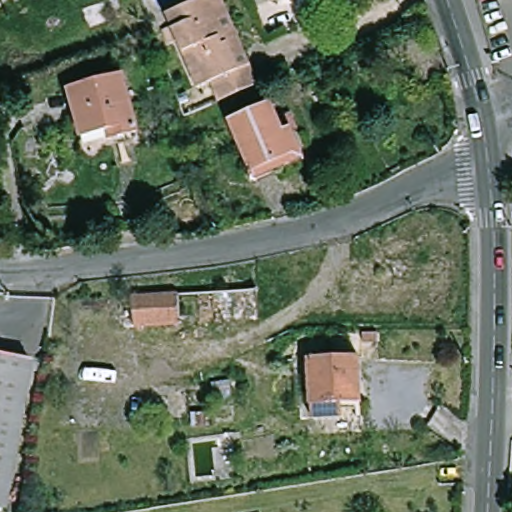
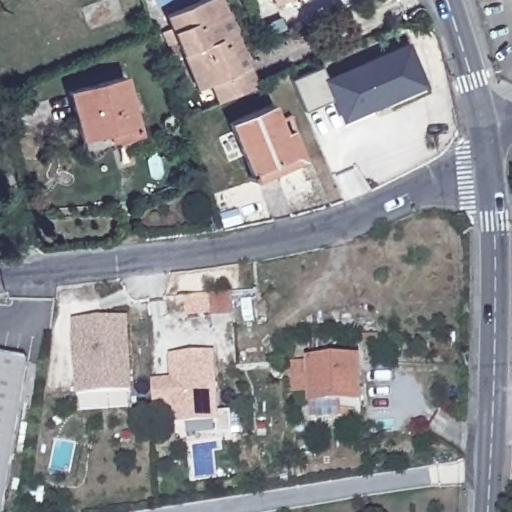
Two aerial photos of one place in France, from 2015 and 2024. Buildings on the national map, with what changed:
unchanged [(255,68),(263,86),(223,104),(215,85),(202,90),(172,17),(212,0),(243,73),(255,68)]
unchanged [(227,0),(255,68),(243,73),(212,0),(213,0),(227,0)]
unchanged [(272,0),(277,0),(273,1),(272,0)]
new [(321,66),(325,77),(407,41),(427,86),(342,122),(331,100),(305,111),(292,80),(321,66)]
unchanged [(105,135),(80,140),(68,91),(121,78),(135,135),(116,140),(107,142),(105,135)]
unchanged [(253,181),(250,173),(227,121),(269,102),(278,123),(285,120),(300,150),(303,159),(253,181)]
demolished [(182,326),(135,328),(133,300),(180,297),(182,326)]
new [(128,317),(134,392),(80,396),(75,321),(128,317)]
new [(213,351),(219,413),(231,412),(232,435),(218,437),(217,423),(175,428),(173,410),(155,411),(152,380),(171,379),(169,355),(213,351)]
unchanged [(0,511),(0,357),(30,361),(4,511),(0,511)]
unchanged [(312,420),(311,406),(310,361),(358,360),(360,405),(342,405),(342,420),(312,420)]

